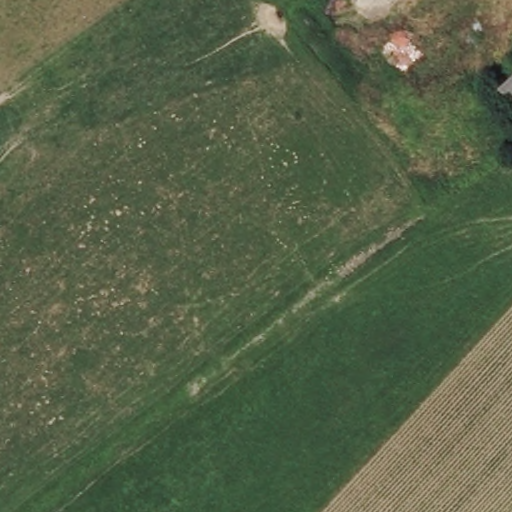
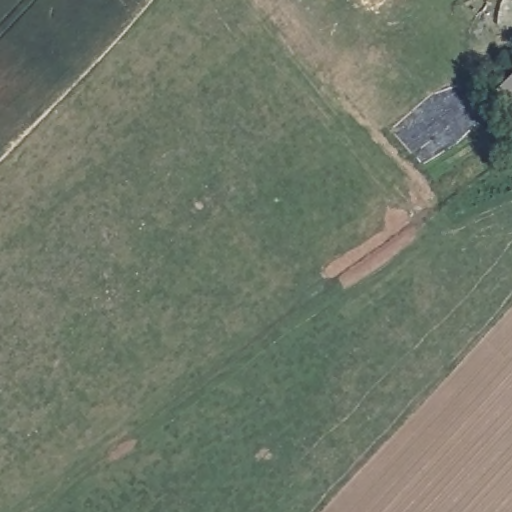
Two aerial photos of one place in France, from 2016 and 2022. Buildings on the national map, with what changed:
unchanged [(512,78),(512,103),(499,90),(512,78)]

